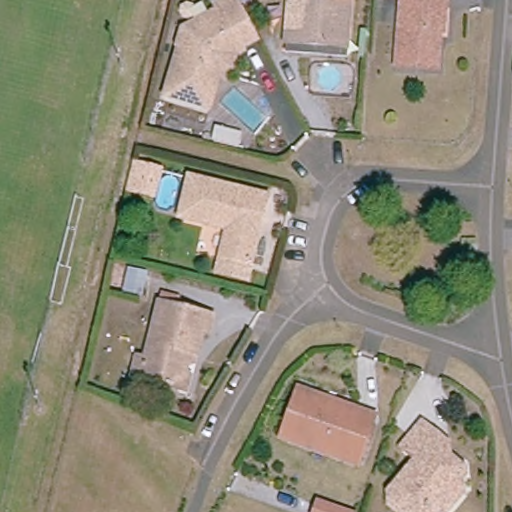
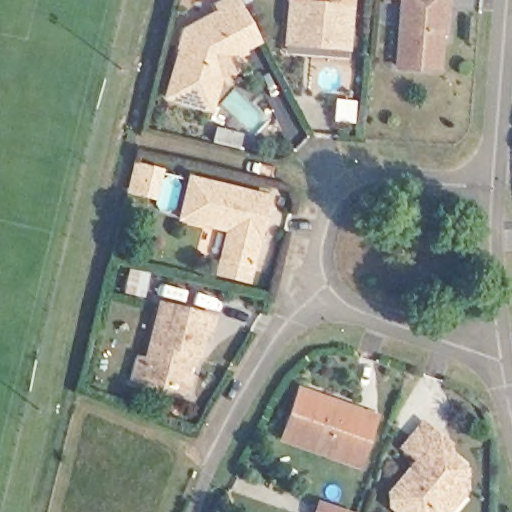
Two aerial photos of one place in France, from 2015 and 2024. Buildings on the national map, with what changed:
unchanged [(252,57),(218,77),(206,115),(161,101),(175,50),(181,35),(192,29),(223,10),(222,6),(233,0),(260,47),(249,54),(252,57)]
unchanged [(306,48),(287,46),(288,24),(289,9),(290,6),(290,0),(315,0),(314,8),(353,9),(351,37),(350,51),(335,49),(306,48)]
unchanged [(438,15),(434,69),(397,66),(401,0),(445,0),(445,15),(438,15)]
unchanged [(154,198),(122,189),(132,159),(161,165),(154,198)]
unchanged [(253,268),(225,261),(230,234),(184,223),(194,183),(270,200),(253,268)]
unchanged [(139,295),(121,289),(127,265),(146,270),(139,295)]
unchanged [(135,370),(147,372),(161,311),(214,323),(207,363),(198,362),(189,398),(149,391),(132,386),(135,370)]
unchanged [(343,451),(286,431),(301,393),(358,412),(343,451)]
unchanged [(374,418),(355,471),(281,444),(286,431),(343,451),(358,412),(374,418)]
unchanged [(453,512),(391,512),(390,497),(416,465),(402,453),(424,426),(446,442),(447,453),(455,462),(466,472),(463,486),(458,493),(465,499),(453,512)]
unchanged [(317,497),(355,509),(354,512),(313,512),(317,497)]

